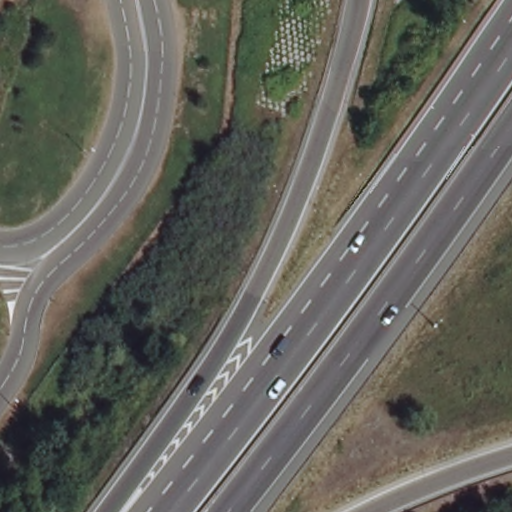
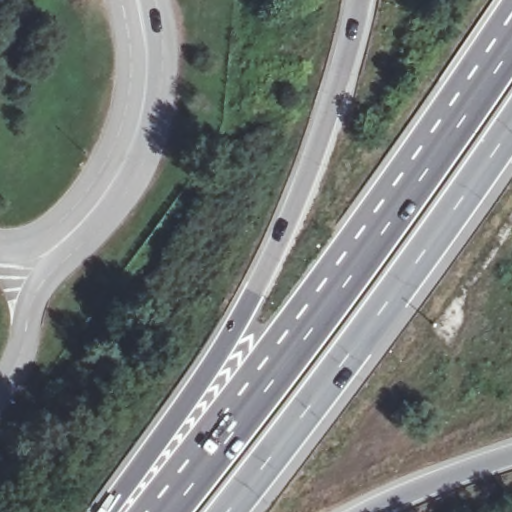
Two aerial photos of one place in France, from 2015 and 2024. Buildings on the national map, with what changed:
[]

